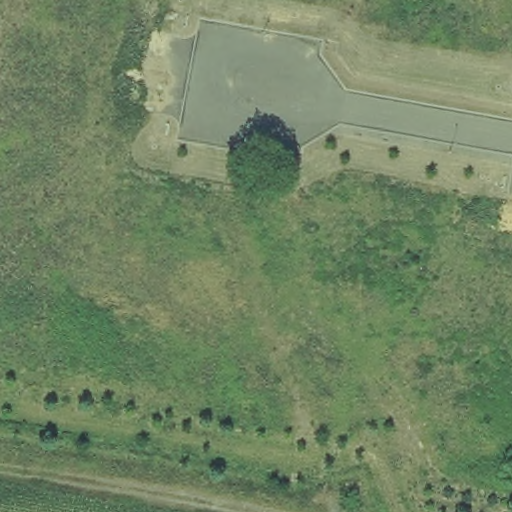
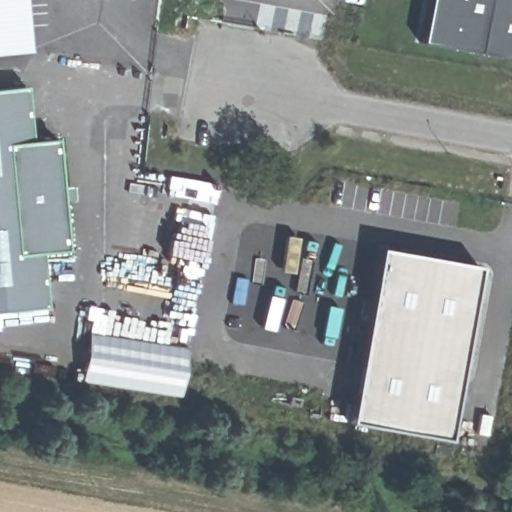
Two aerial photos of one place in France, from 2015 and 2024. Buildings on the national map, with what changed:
new [(38,70),(0,73),(0,0),(32,0),(38,70)]
new [(477,53),(421,43),(429,0),(512,0),(512,59),(477,53)]
new [(36,146),(61,145),(70,256),(46,259),(51,314),(0,318),(0,95),(30,93),(36,146)]
new [(352,437),(379,261),(482,274),(447,452),(352,437)]

